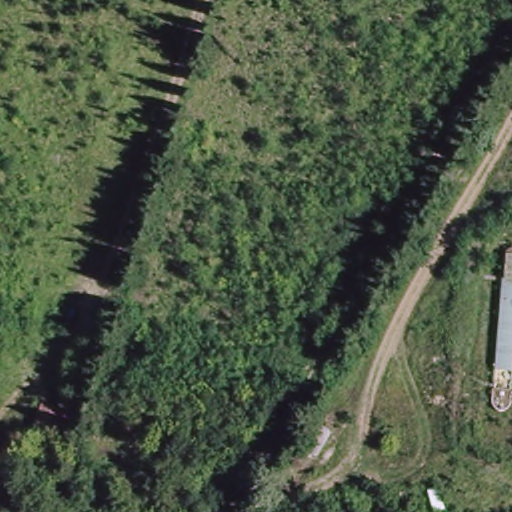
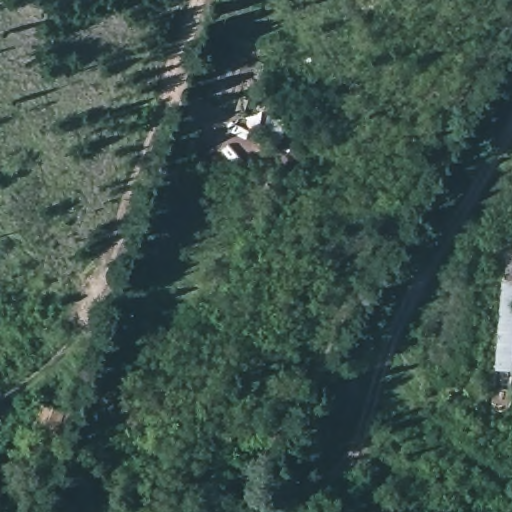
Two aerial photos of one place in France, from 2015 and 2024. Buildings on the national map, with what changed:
unchanged [(54,437),(34,431),(42,404),(63,409),(54,437)]

